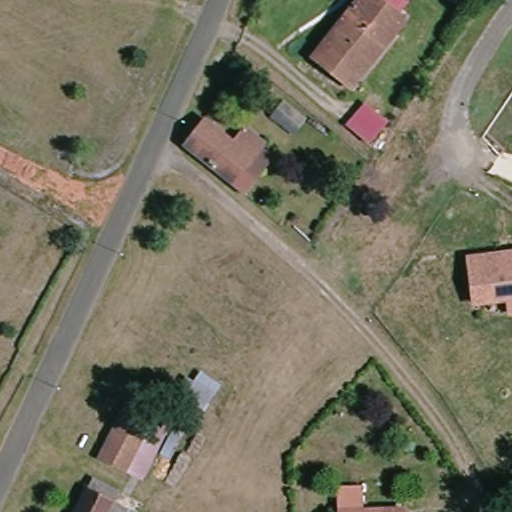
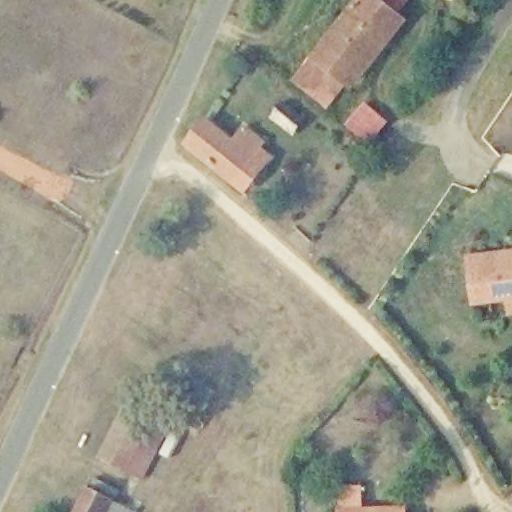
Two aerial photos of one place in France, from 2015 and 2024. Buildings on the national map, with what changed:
unchanged [(378,54),(373,49),(342,82),(312,56),(355,6),(360,0),(375,0),(403,23),(402,25),(378,54)]
new [(342,82),(373,49),(378,54),(350,89),(346,85),(326,109),(291,82),(312,56),(342,82)]
unchanged [(387,120),(367,144),(345,128),(365,103),(387,120)]
unchanged [(227,181),(187,146),(204,128),(222,145),(237,130),(255,147),(267,158),(237,192),(227,181)]
unchanged [(512,249),(512,313),(506,314),(503,301),(472,306),(465,255),(512,249)]
unchanged [(133,476),(104,463),(129,408),(156,420),(133,476)]
unchanged [(130,512),(75,512),(87,487),(132,509),(130,512)]
unchanged [(405,512),(339,512),(339,510),(405,510),(405,512)]

